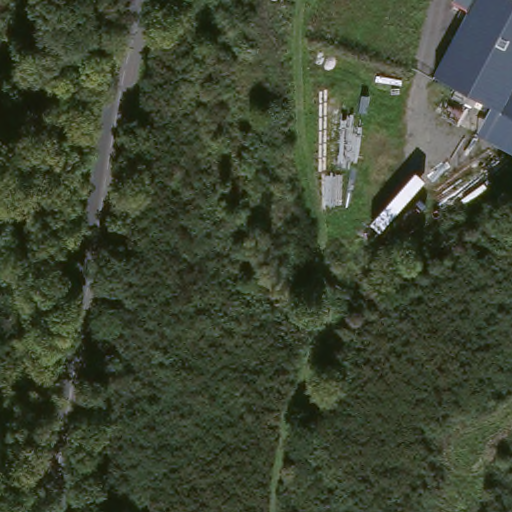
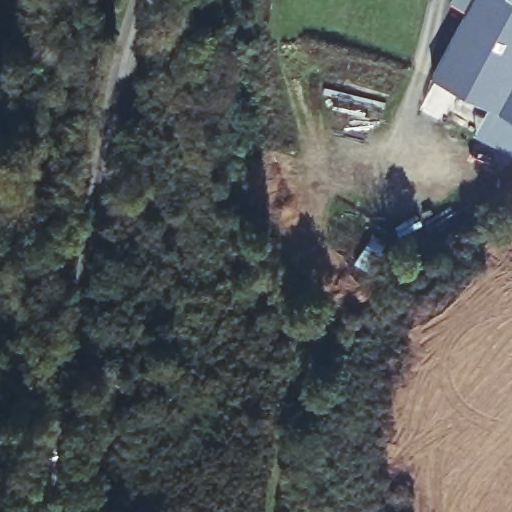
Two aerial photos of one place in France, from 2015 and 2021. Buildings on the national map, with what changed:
unchanged [(497,134),(508,111),(489,99),(483,107),(463,97),(468,89),(449,78),(480,12),(465,4),(467,0),(512,0),(512,121),(504,137),(497,134)]
unchanged [(512,121),(512,142),(504,137),(512,121)]

